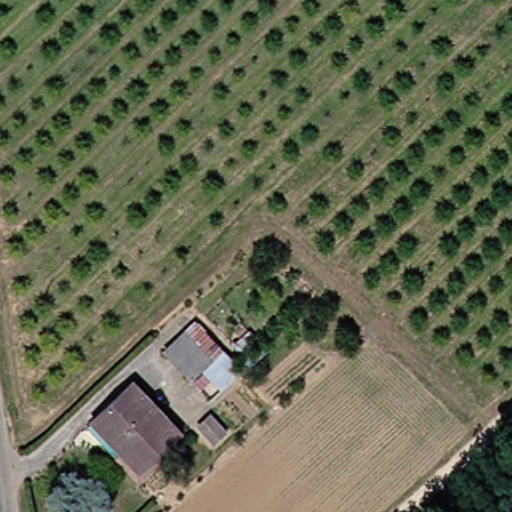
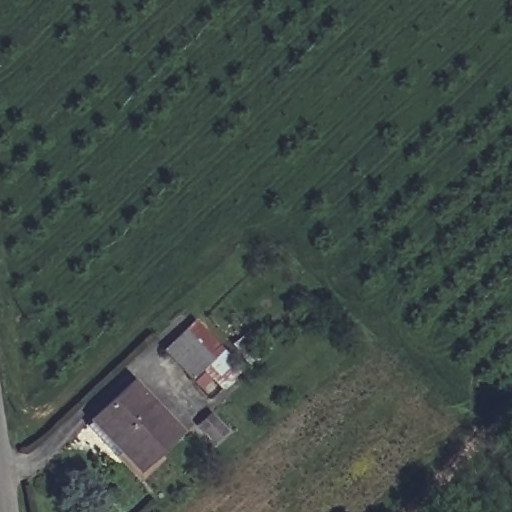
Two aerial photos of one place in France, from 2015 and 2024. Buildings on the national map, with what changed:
unchanged [(200,371),(189,382),(164,356),(195,325),(221,351),(238,369),(218,389),(200,371)]
unchanged [(120,450),(91,419),(131,381),(178,431),(154,453),(159,459),(143,474),(120,450)]
unchanged [(213,442),(201,429),(197,424),(209,413),(214,417),(226,430),(213,442)]

